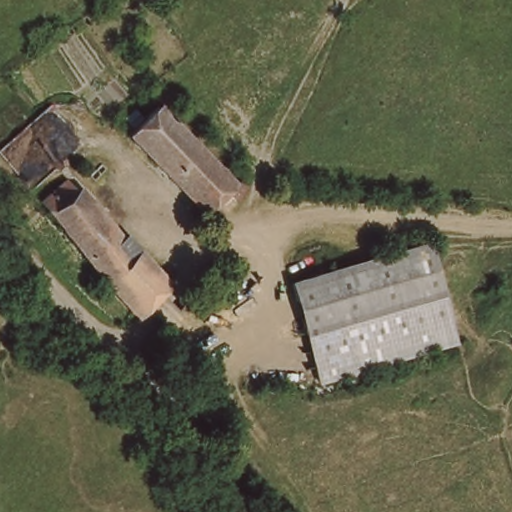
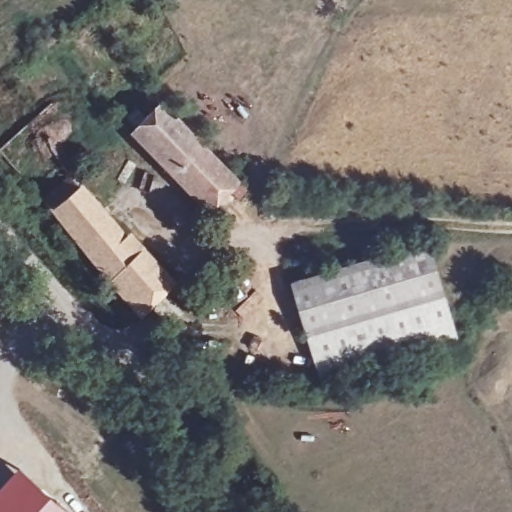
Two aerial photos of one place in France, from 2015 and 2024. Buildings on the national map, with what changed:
unchanged [(246,187),(233,201),(224,192),(211,205),(221,215),(213,227),(198,216),(202,212),(126,134),(154,106),(232,185),(238,178),(246,187)]
unchanged [(143,269),(149,264),(178,295),(147,328),(58,224),(48,212),(58,203),(70,192),(79,204),(85,199),(143,269)]
unchanged [(462,342),(326,382),(296,283),(433,243),(462,342)]
new [(0,489),(21,467),(70,512),(0,512),(0,489)]

